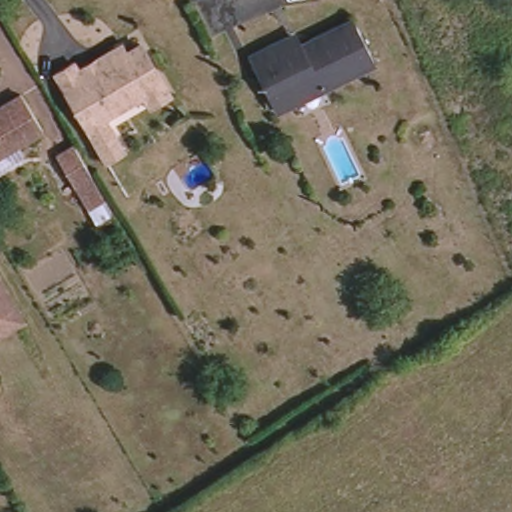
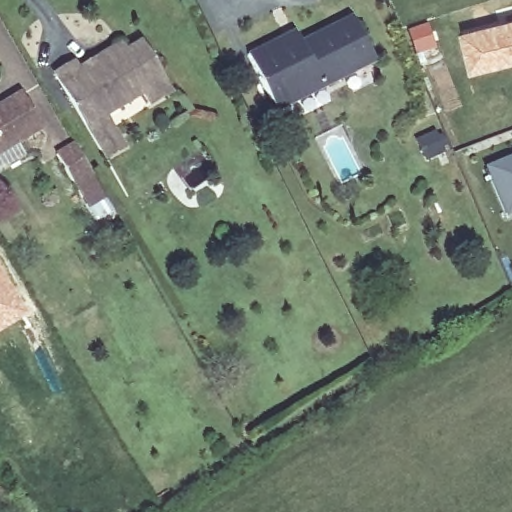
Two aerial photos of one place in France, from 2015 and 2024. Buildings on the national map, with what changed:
unchanged [(350,18),(372,62),(318,89),(312,78),(290,89),(292,93),(270,105),(246,57),(282,39),(293,33),(297,40),(299,44),(350,18)]
new [(512,18),(512,62),(471,73),(460,32),(512,18)]
new [(426,23),(435,51),(414,57),(403,31),(426,23)]
unchanged [(104,161),(89,136),(54,76),(72,65),(76,72),(99,59),(119,47),(123,54),(138,46),(168,96),(148,108),(138,90),(125,98),(122,108),(103,119),(107,125),(122,151),(104,161)]
unchanged [(43,134),(0,160),(0,112),(23,98),(43,134)]
unchanged [(55,155),(73,145),(105,203),(88,210),(55,155)]
new [(512,156),(512,214),(505,217),(485,168),(512,156)]
unchanged [(0,332),(0,279),(23,318),(0,332)]

